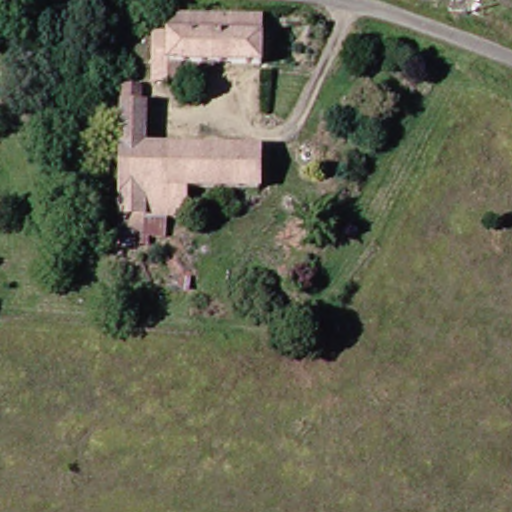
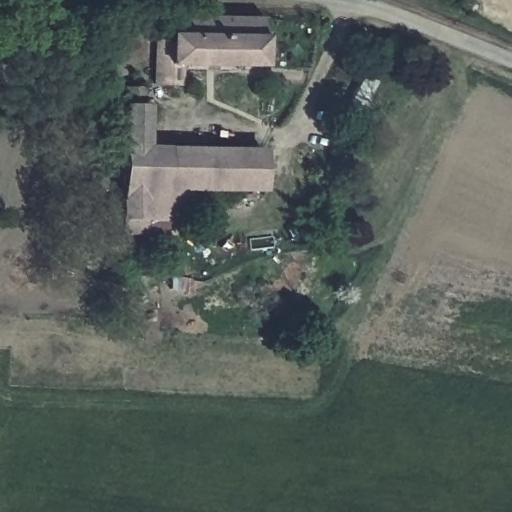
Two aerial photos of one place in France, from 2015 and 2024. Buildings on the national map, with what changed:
unchanged [(149,84),(149,65),(150,35),(169,36),(169,22),(231,23),(254,23),(254,40),(254,66),(175,65),(175,85),(149,84)]
unchanged [(254,191),(182,191),(182,220),(162,219),(139,219),(106,219),(102,219),(103,196),(118,196),(120,90),(138,91),(138,109),(142,110),(141,147),(160,148),(255,150),(254,191)]
unchanged [(161,235),(140,234),(139,246),(107,245),(106,219),(139,219),(162,219),(161,235)]

